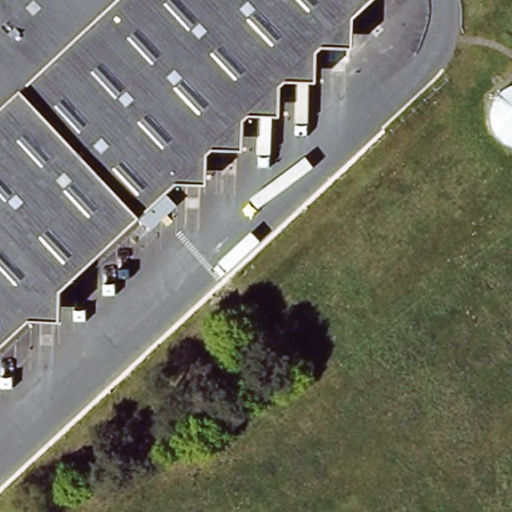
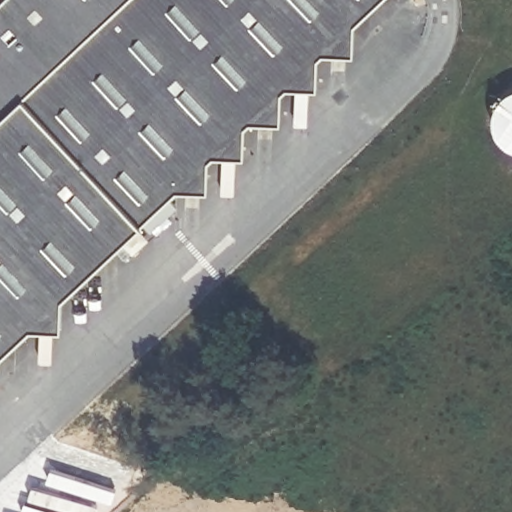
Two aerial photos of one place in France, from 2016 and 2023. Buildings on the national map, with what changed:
unchanged [(0,93),(0,0),(99,0),(0,93)]
unchanged [(358,19),(329,20),(325,52),(292,52),(292,84),(257,85),(253,123),(220,120),(218,152),(212,159),(184,161),(180,187),(70,292),(37,291),(37,322),(0,356),(0,93),(99,0),(377,0),(358,19)]
unchanged [(502,87),(508,82),(512,81),(512,146),(507,146),(497,137),(493,125),(491,119),(491,111),(492,104),(497,96),(502,87)]

